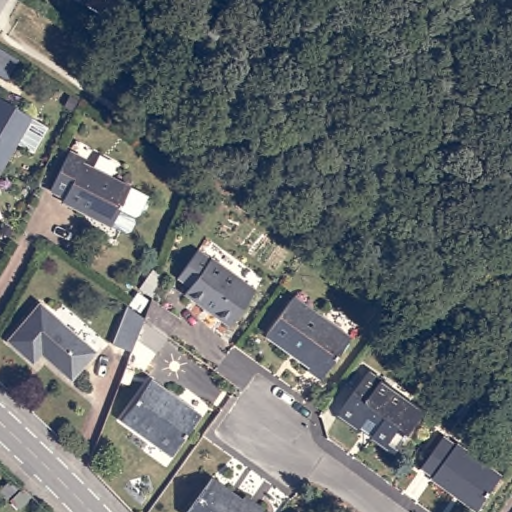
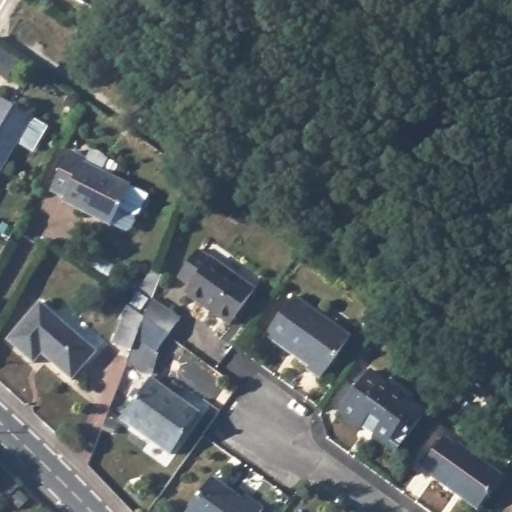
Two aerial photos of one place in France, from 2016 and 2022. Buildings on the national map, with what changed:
unchanged [(31,121),(0,173),(0,102),(31,121)]
unchanged [(71,144),(85,152),(83,157),(130,180),(147,189),(137,209),(133,210),(119,203),(110,220),(62,196),(64,192),(51,185),(71,144)]
unchanged [(197,249),(255,290),(231,325),(185,293),(190,287),(177,278),(197,249)]
unchanged [(136,339),(132,349),(115,342),(127,306),(126,305),(137,291),(151,301),(152,299),(180,320),(169,336),(157,352),(136,339)]
unchanged [(293,297),(350,338),(322,379),(307,368),(309,365),(267,336),(293,297)]
unchanged [(37,300),(95,348),(72,377),(41,352),(33,362),(6,340),(37,300)]
unchanged [(373,366),(430,406),(402,447),(345,406),(373,366)]
unchanged [(151,379),(200,414),(170,454),(122,419),(151,379)]
unchanged [(443,436),(456,444),(458,442),(504,475),(482,506),(460,490),(457,495),(432,477),(433,475),(422,466),(443,436)]
unchanged [(241,499),(245,494),(263,508),(260,512),(187,512),(212,477),(241,499)]
unchanged [(302,512),(295,512),(297,508),(302,512)]

